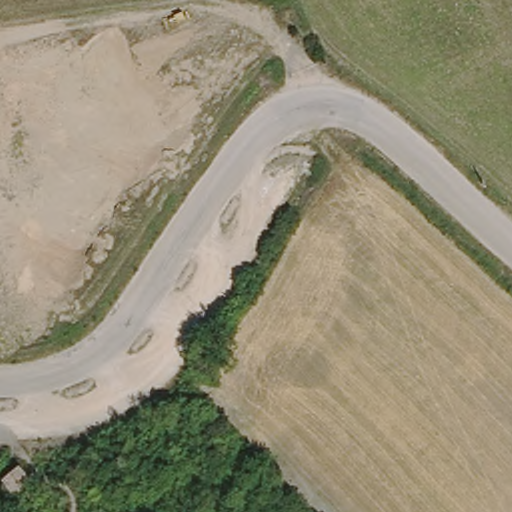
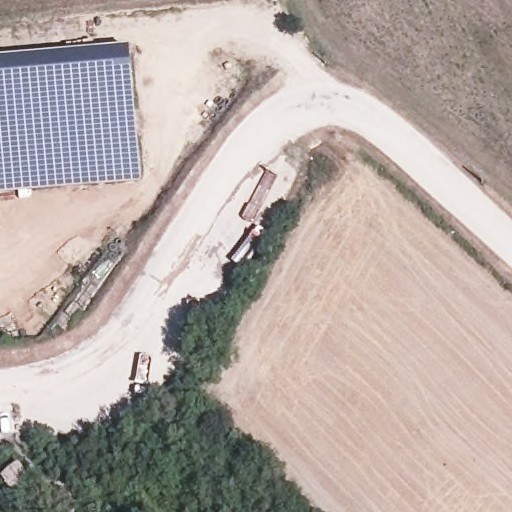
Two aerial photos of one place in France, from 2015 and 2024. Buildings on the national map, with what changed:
new [(131,48),(142,182),(0,195),(0,60),(131,48)]
unchanged [(3,475),(17,465),(28,481),(14,492),(3,475)]

